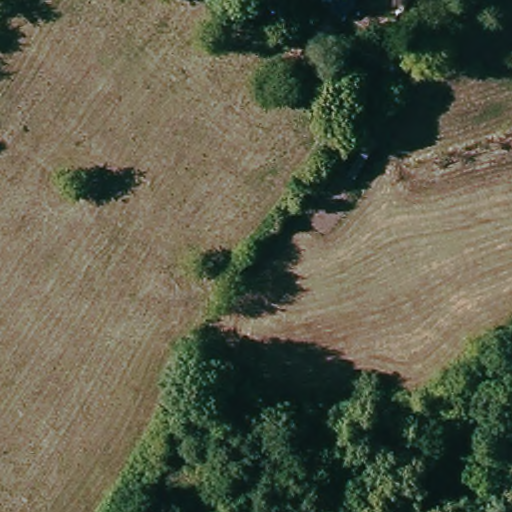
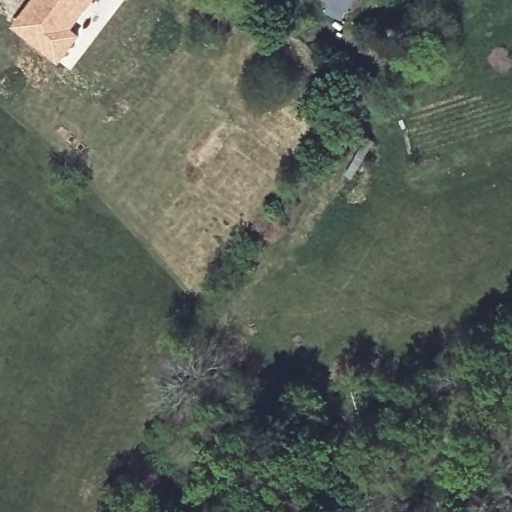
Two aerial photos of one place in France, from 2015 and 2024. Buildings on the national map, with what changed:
new [(32,0),(96,0),(75,27),(83,34),(60,64),(12,26),(32,0)]
unchanged [(341,28),(312,15),(317,4),(307,0),(354,0),(341,28)]

